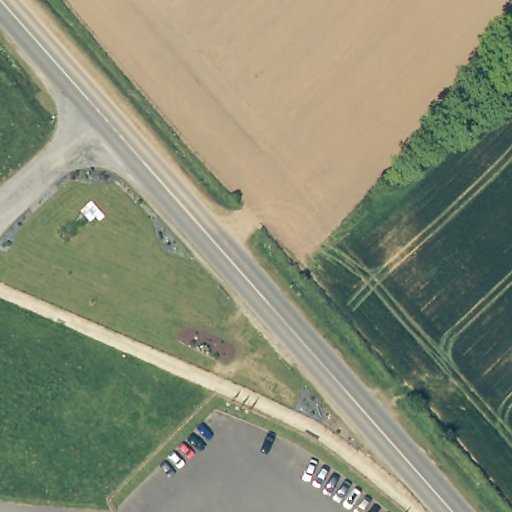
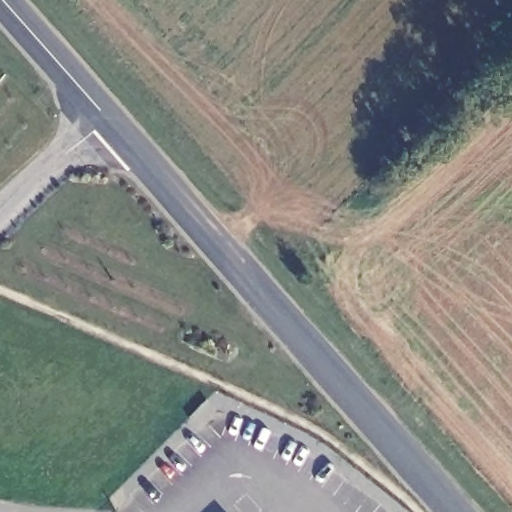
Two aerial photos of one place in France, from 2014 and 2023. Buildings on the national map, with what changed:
[]

